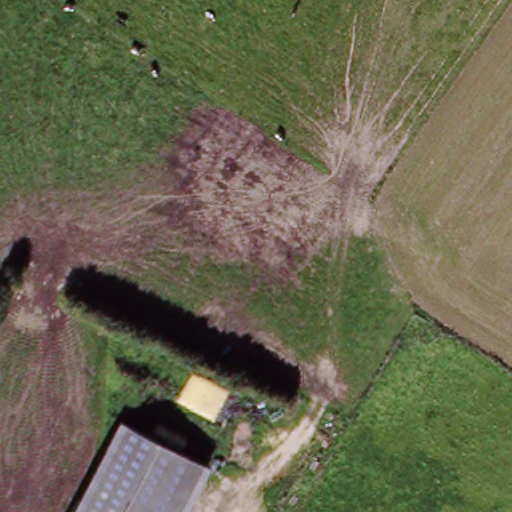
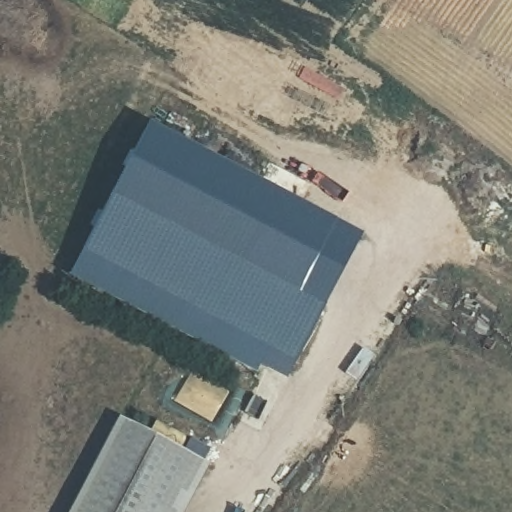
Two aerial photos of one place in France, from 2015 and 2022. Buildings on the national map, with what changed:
new [(335,223),(297,295),(323,309),(294,364),(82,251),(149,124),(335,223)]
unchanged [(120,413),(216,466),(192,512),(68,512),(120,413)]

